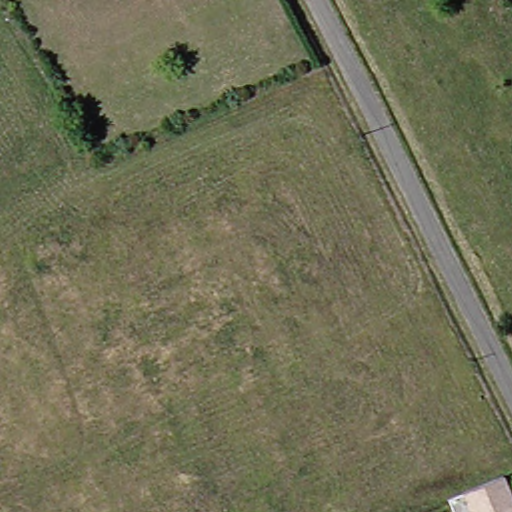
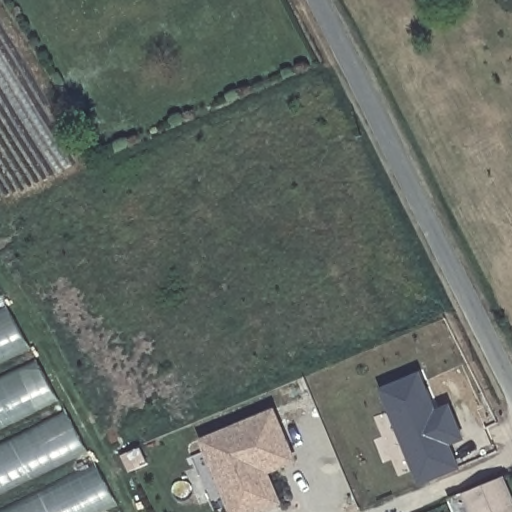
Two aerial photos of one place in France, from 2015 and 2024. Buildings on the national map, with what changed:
new [(2,296),(0,297),(0,292),(2,296)]
new [(10,306),(32,347),(0,363),(0,311),(10,306)]
new [(37,359),(59,400),(0,429),(0,378),(37,359)]
new [(382,391),(419,376),(435,412),(449,407),(461,436),(447,442),(458,467),(420,483),(382,391)]
new [(67,411),(89,451),(0,494),(0,444),(67,411)]
new [(203,442),(273,413),(288,449),(261,462),(279,504),(256,512),(232,512),(203,442)]
new [(97,464),(119,504),(102,512),(0,512),(97,464)]
unchanged [(452,500),(510,476),(512,481),(512,512),(457,512),(452,500)]

